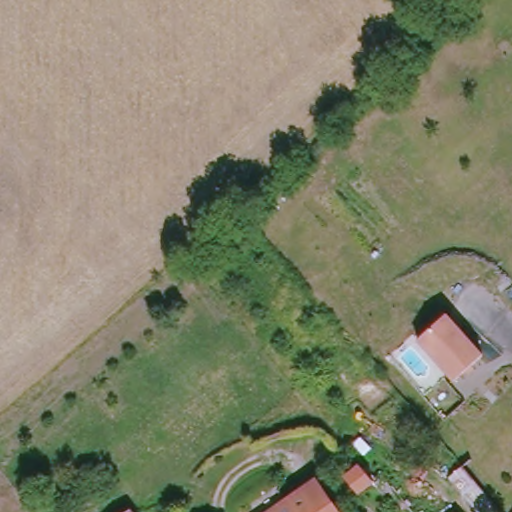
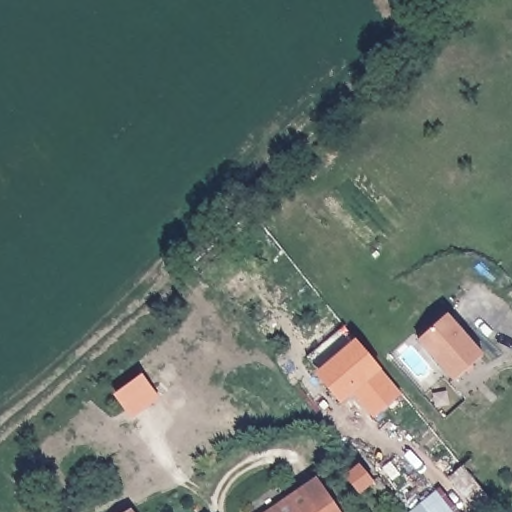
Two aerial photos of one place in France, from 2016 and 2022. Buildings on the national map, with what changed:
unchanged [(421,340),(450,315),(485,357),(456,381),(421,340)]
new [(376,417),(353,395),(343,403),(315,373),(355,339),(381,368),(401,394),(376,417)]
unchanged [(374,481),(357,492),(346,479),(363,467),(374,481)]
unchanged [(315,482),(317,485),(325,495),(337,512),(275,512),(315,482)]
new [(435,491),(455,512),(410,512),(435,491)]

